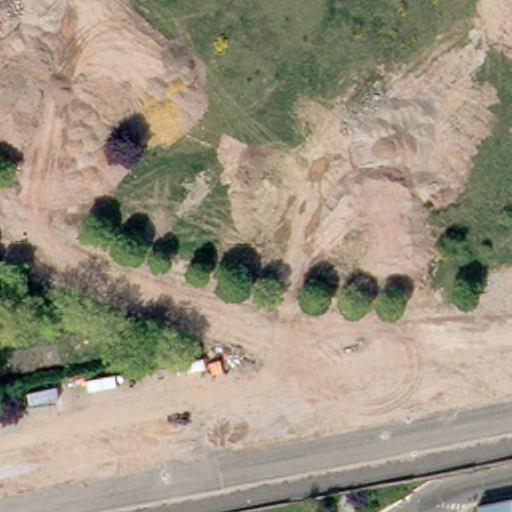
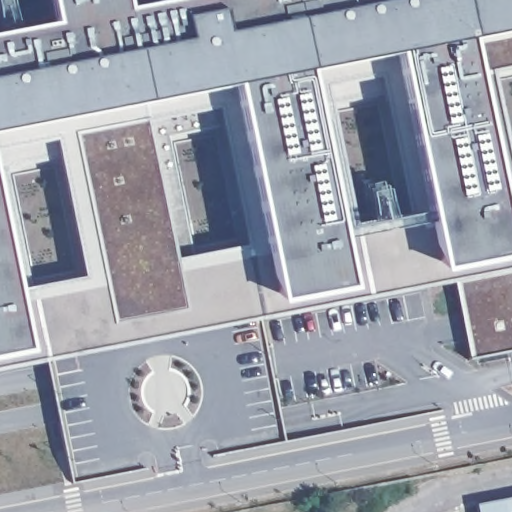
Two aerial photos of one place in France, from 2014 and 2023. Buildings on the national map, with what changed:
new [(57,26),(51,0),(126,0),(128,12),(187,0),(512,0),(512,32),(468,40),(510,259),(437,271),(396,56),(307,72),(348,289),(278,303),(233,84),(0,132),(0,37),(57,26)]
new [(27,352),(15,291),(34,288),(87,279),(63,154),(60,137),(0,147),(0,132),(233,84),(278,303),(348,289),(307,72),(396,56),(437,271),(510,259),(468,40),(512,32),(512,68),(492,71),(512,181),(512,272),(456,282),(262,320),(47,360),(0,370),(0,357),(27,352)]
new [(327,86),(382,75),(385,94),(330,104),(327,86)]
new [(172,135),(195,257),(178,261),(150,120),(220,106),(224,125),(172,135)]
new [(11,165),(34,288),(15,291),(10,260),(0,210),(0,147),(60,137),(63,154),(11,165)]
new [(10,260),(15,291),(27,352),(0,357),(0,210),(10,260)]
new [(456,282),(512,272),(512,351),(470,358),(456,282)]
new [(73,484),(47,360),(262,320),(285,442),(73,484)]
unchanged [(512,502),(512,512),(477,512),(477,509),(512,502)]

